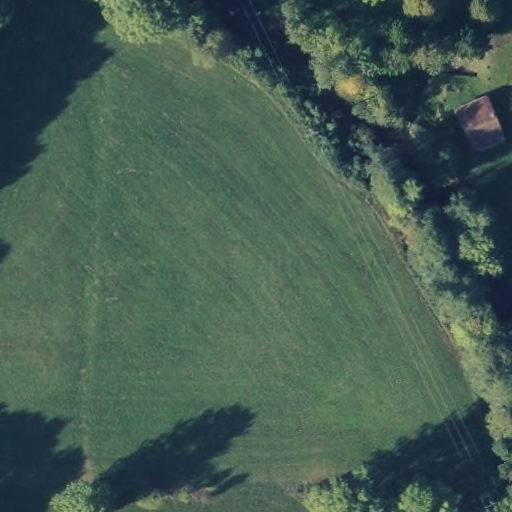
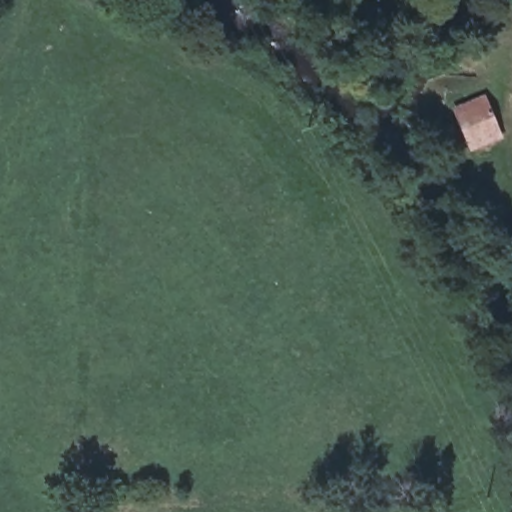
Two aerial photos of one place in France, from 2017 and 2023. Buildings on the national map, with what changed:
unchanged [(483,89),(499,124),(472,136),(455,101),(483,89)]

